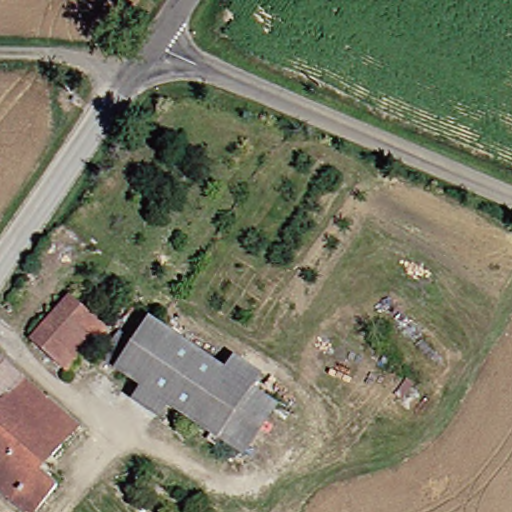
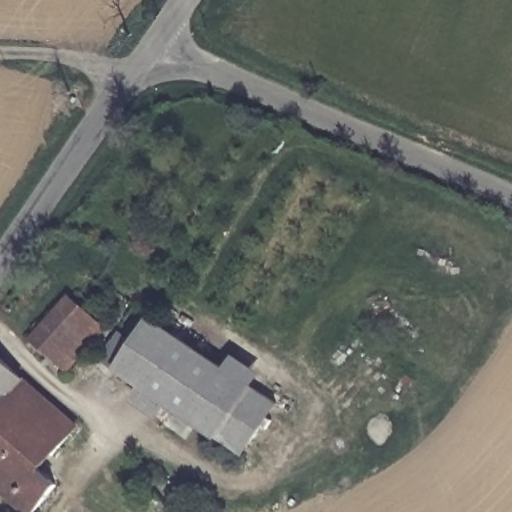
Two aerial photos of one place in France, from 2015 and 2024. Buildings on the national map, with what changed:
unchanged [(89,323),(54,363),(19,332),(54,292),(89,323)]
unchanged [(268,403),(233,455),(106,370),(91,360),(110,332),(124,342),(141,318),(268,403)]
unchanged [(43,409),(5,453),(25,471),(44,487),(22,512),(13,512),(0,501),(0,372),(43,409)]
unchanged [(64,427),(25,471),(5,453),(43,409),(64,427)]

